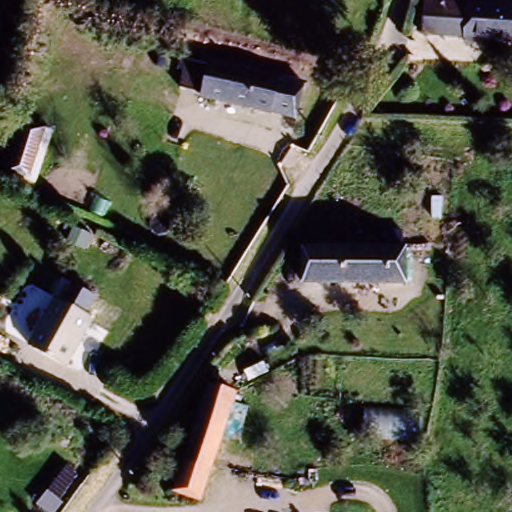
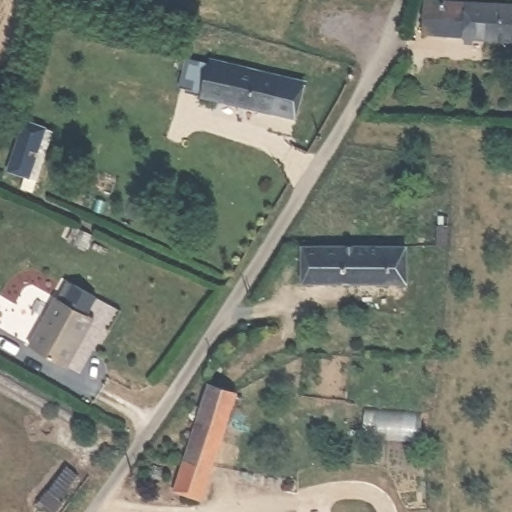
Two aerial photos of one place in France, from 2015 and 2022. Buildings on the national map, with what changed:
unchanged [(421,0),(512,5),(512,42),(459,38),(418,34),(420,13),(421,0)]
unchanged [(297,119),(202,96),(203,93),(181,88),(187,59),(210,64),(211,61),(305,84),(297,119)]
unchanged [(37,180),(30,178),(10,172),(26,121),(47,128),(54,131),(37,180)]
unchanged [(303,242),(407,242),(407,278),(304,278),(303,242)]
unchanged [(90,313),(77,337),(62,362),(26,342),(53,293),(90,313)]
unchanged [(201,395),(209,385),(232,393),(197,500),(169,490),(201,395)]
unchanged [(60,499),(64,502),(57,512),(49,512),(38,504),(66,467),(79,476),(60,499)]

